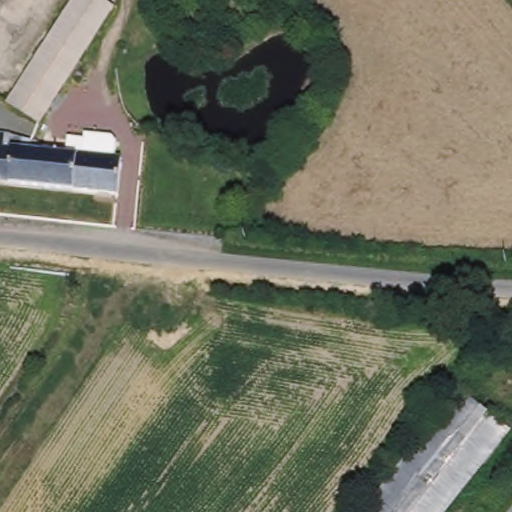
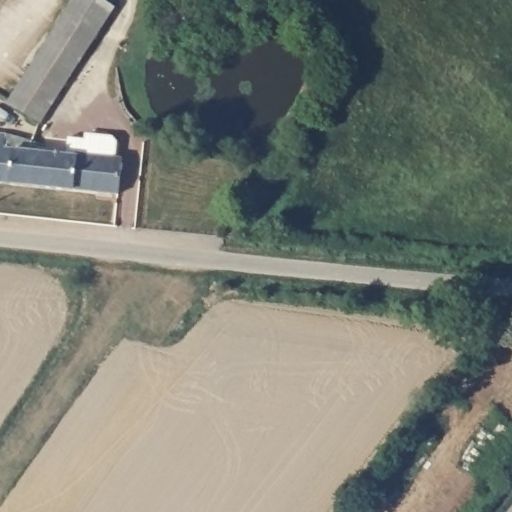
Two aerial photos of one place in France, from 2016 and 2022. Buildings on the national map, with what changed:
unchanged [(42,123),(11,103),(76,0),(109,0),(115,4),(42,123)]
unchanged [(0,129),(5,130),(23,135),(38,149),(81,155),(77,189),(0,178),(0,129)]
unchanged [(126,161),(121,195),(77,189),(81,155),(126,161)]
demolished [(459,388),(511,430),(447,512),(362,512),(459,388)]

